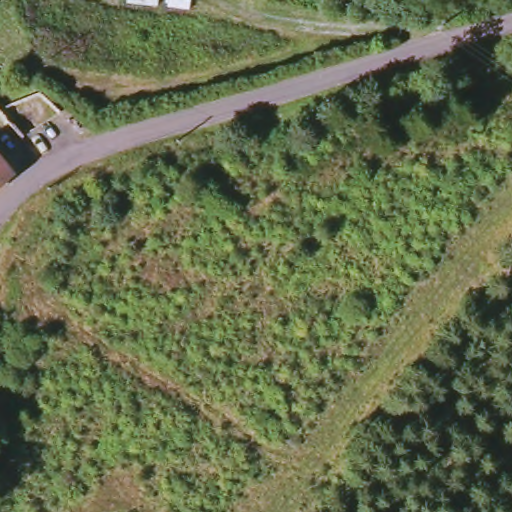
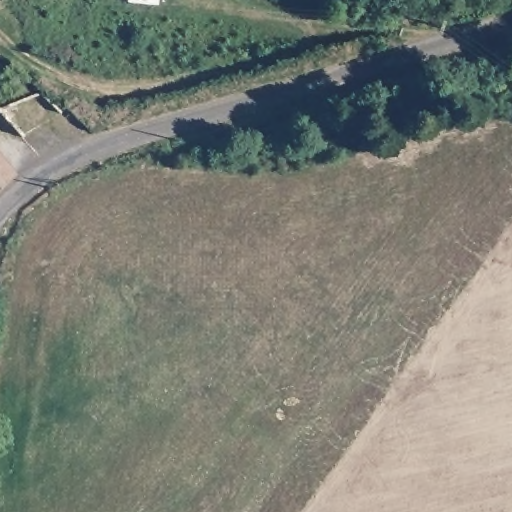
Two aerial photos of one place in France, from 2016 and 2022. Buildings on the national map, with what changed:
unchanged [(0,157),(12,169),(0,179),(0,157)]

